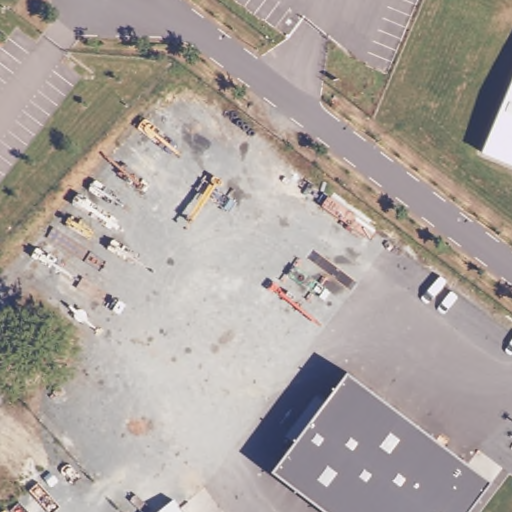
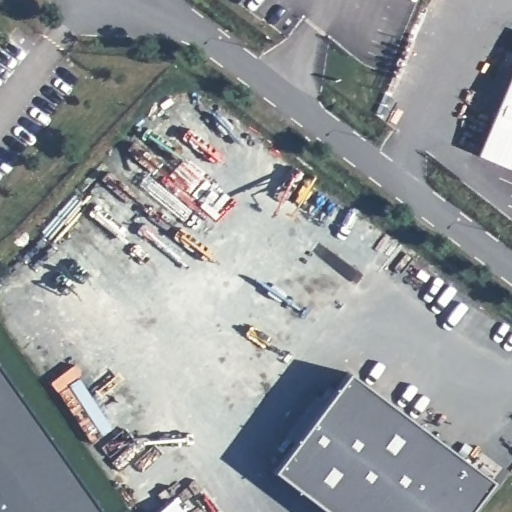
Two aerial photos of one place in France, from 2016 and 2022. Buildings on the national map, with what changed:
unchanged [(512,75),(512,161),(478,146),(512,75)]
new [(99,512),(0,512),(0,371),(99,512)]
unchanged [(272,471),(348,372),(492,481),(468,512),(327,512),(272,471)]
unchanged [(170,500),(180,512),(154,512),(170,500)]

